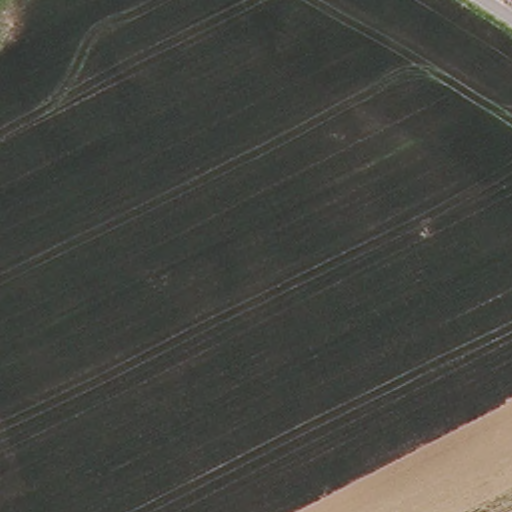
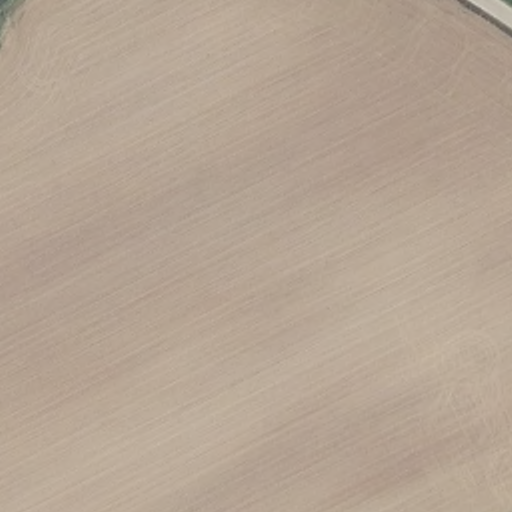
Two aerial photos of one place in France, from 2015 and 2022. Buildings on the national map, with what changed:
[]

